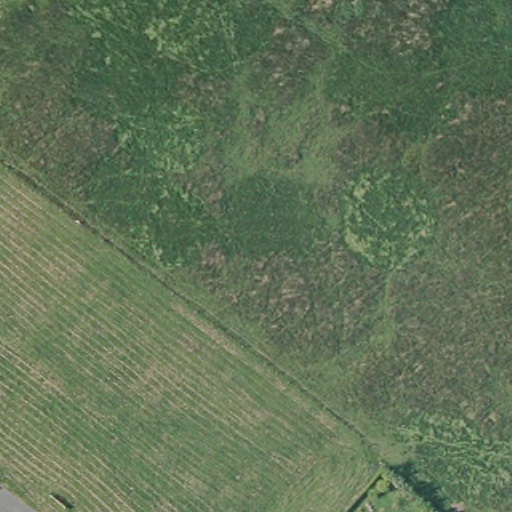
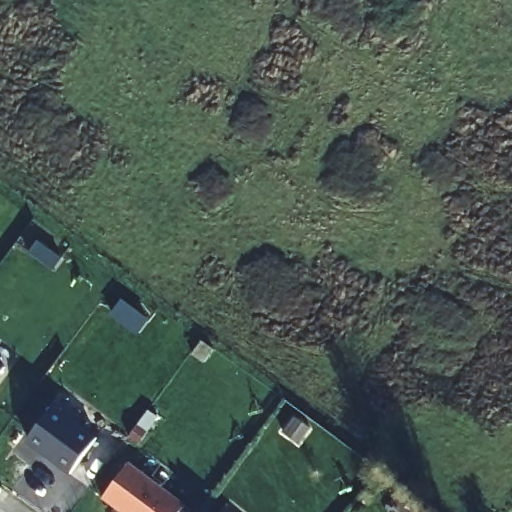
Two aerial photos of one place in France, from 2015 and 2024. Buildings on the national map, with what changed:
new [(4,371),(0,376),(0,368),(4,371)]
new [(97,442),(69,478),(24,445),(51,409),(97,442)]
new [(141,424),(151,432),(142,443),(132,436),(141,424)]
new [(185,512),(116,512),(103,503),(129,466),(187,510),(185,512)]

